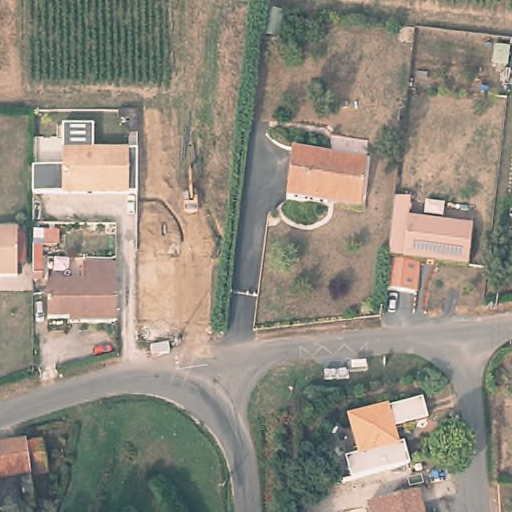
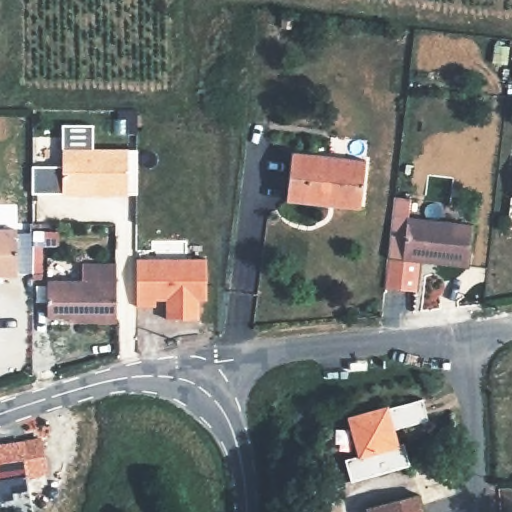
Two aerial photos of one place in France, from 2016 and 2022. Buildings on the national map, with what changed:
unchanged [(93,127),(94,148),(139,149),(137,197),(62,197),(62,192),(34,191),(34,167),(62,167),(62,128),(93,127)]
unchanged [(287,196),(294,146),(367,155),(361,205),(287,196)]
unchanged [(420,259),(416,291),(383,287),(387,256),(395,194),(418,197),(416,215),(473,222),(468,265),(443,262),(432,261),(420,259)]
unchanged [(14,233),(14,281),(0,281),(0,233),(14,233)]
new [(156,307),(133,306),(135,257),(207,257),(206,299),(199,299),(198,318),(164,319),(165,299),(156,300),(156,307)]
unchanged [(72,315),(47,315),(47,278),(82,278),(82,261),(116,261),(116,319),(82,319),(81,319),(72,319),(72,315)]
demolished [(139,268),(179,269),(176,336),(138,336),(139,268)]
unchanged [(344,459),(358,456),(348,418),(387,408),(387,409),(422,401),(427,421),(393,430),(397,446),(403,444),(409,466),(363,478),(350,482),(344,459)]
unchanged [(39,439),(42,473),(26,475),(29,507),(25,507),(22,488),(20,475),(0,478),(0,444),(39,439)]
unchanged [(417,495),(421,512),(366,512),(365,507),(417,495)]

